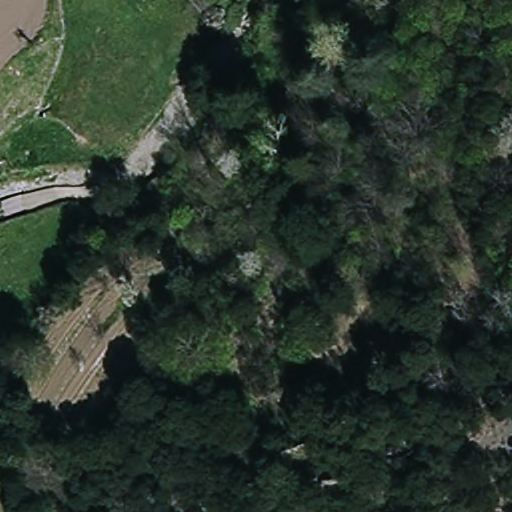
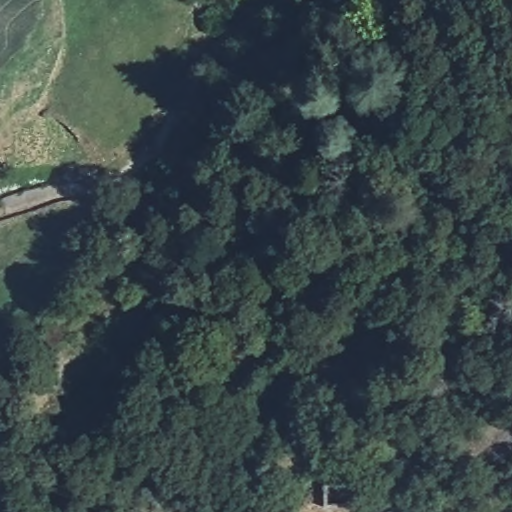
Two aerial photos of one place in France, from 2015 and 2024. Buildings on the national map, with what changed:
unchanged [(396,7),(383,0),(401,0),(396,7)]

